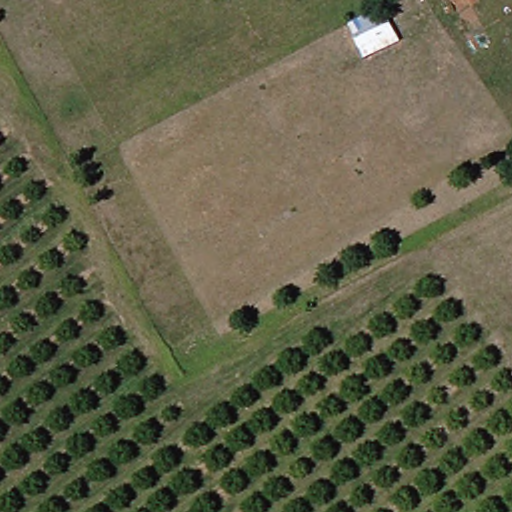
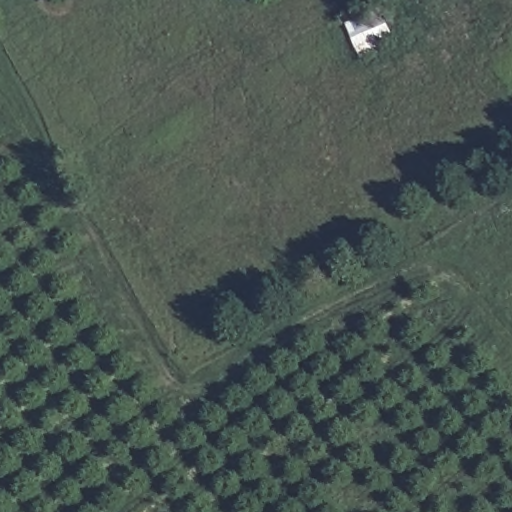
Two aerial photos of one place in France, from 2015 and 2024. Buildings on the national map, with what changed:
unchanged [(370,61),(356,25),(389,8),(410,43),(370,61)]

